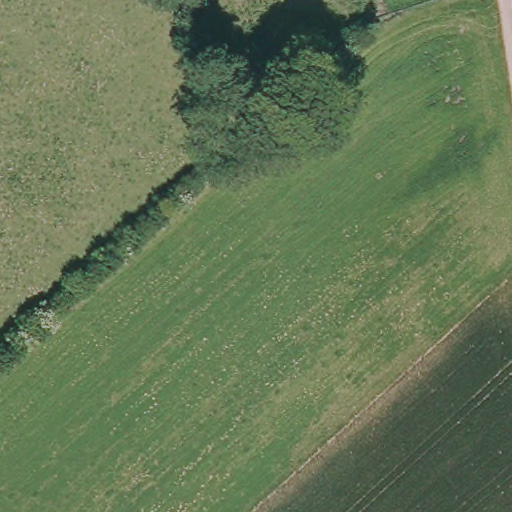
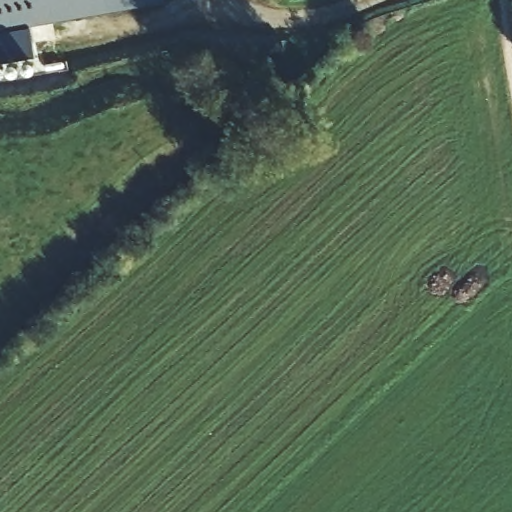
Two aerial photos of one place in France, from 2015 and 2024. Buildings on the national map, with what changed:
new [(166,1),(30,25),(35,55),(0,62),(0,0),(166,0),(166,1)]

